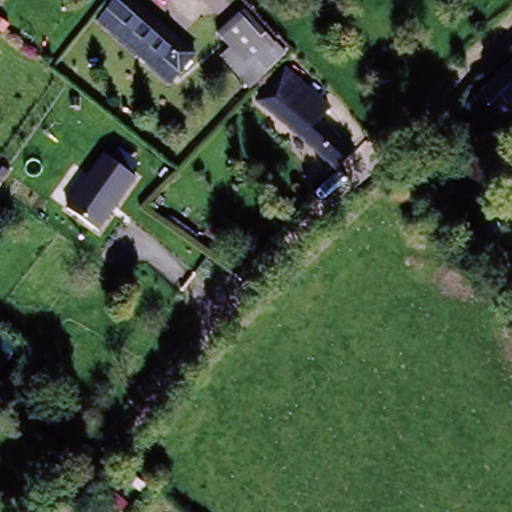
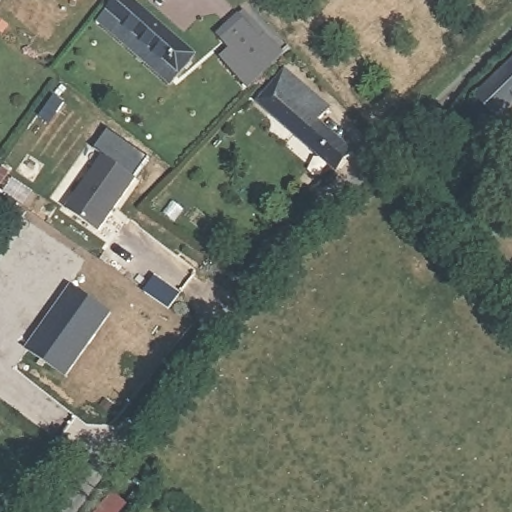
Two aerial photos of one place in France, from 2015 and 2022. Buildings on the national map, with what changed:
unchanged [(118,0),(131,0),(195,53),(171,87),(96,25),(118,0)]
unchanged [(230,48),(218,34),(244,11),(285,54),(251,90),(219,59),(230,48)]
unchanged [(332,104),(321,121),(355,152),(341,172),(256,104),(287,68),(332,104)]
unchanged [(470,112),(512,68),(512,104),(488,129),(470,112)]
unchanged [(103,156),(136,180),(100,235),(65,210),(103,156)]
new [(71,284),(109,312),(65,374),(25,349),(71,284)]

